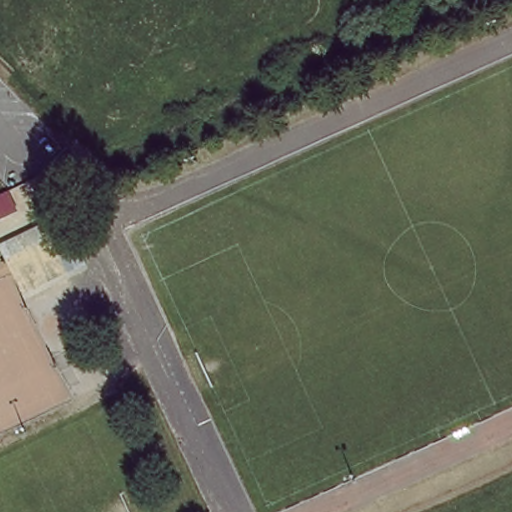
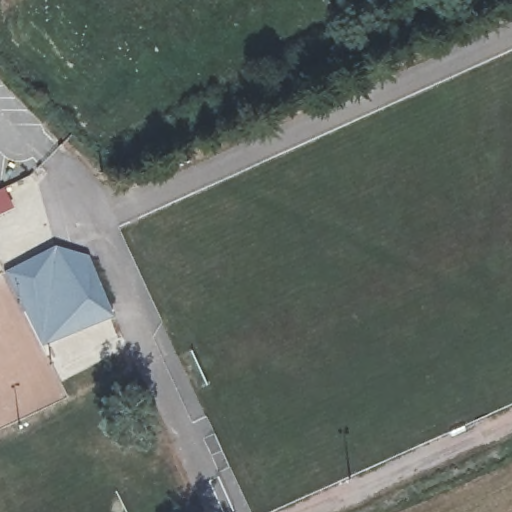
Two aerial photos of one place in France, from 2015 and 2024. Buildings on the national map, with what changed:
new [(13,210),(0,216),(0,188),(5,185),(13,210)]
demolished [(0,250),(0,197),(9,193),(21,188),(35,222),(40,233),(0,250)]
new [(53,247),(89,255),(114,317),(42,347),(5,272),(53,247)]

